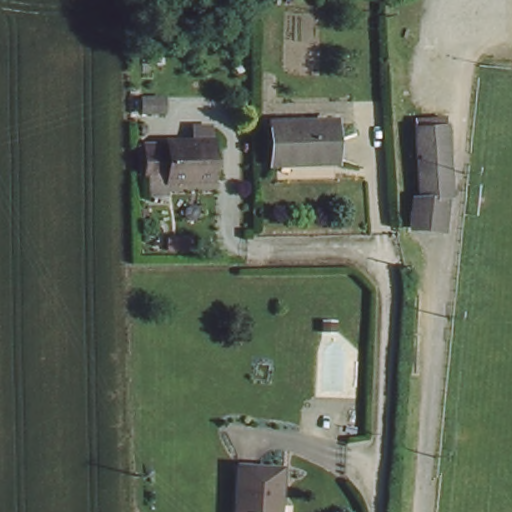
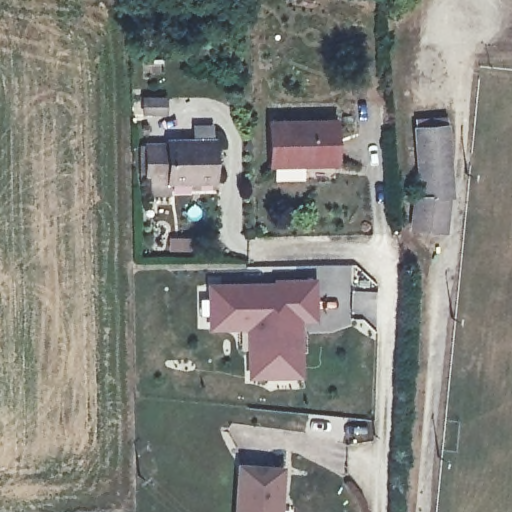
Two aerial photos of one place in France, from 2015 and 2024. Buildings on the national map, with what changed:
unchanged [(449,199),(444,199),(441,237),(410,233),(413,200),(420,200),(419,131),(418,119),(432,118),(432,130),(446,129),(449,199)]
unchanged [(328,123),(331,162),(268,166),(266,125),(328,123)]
unchanged [(149,198),(148,176),(148,145),(168,145),(168,140),(213,139),(213,181),(168,182),(168,197),(149,198)]
new [(276,286),(276,282),(319,282),(319,325),(303,326),(303,380),(248,382),(247,334),(209,334),(205,286),(276,286)]
unchanged [(278,511),(275,510),(275,512),(236,512),(238,469),(280,472),(278,511)]

